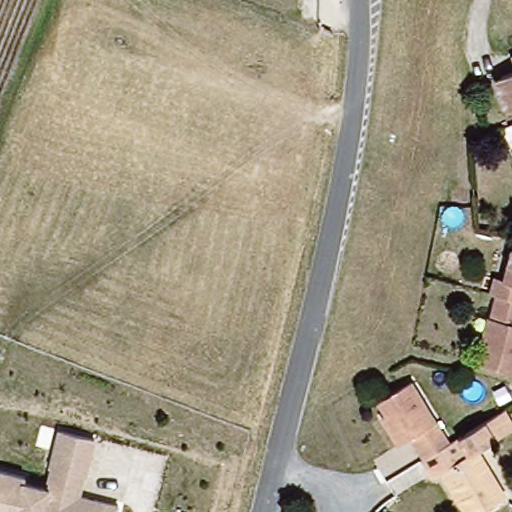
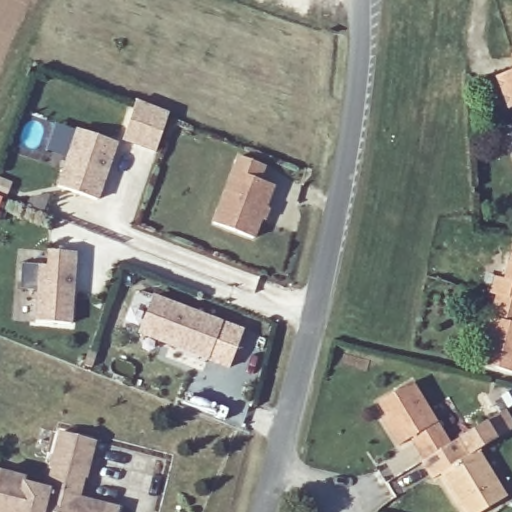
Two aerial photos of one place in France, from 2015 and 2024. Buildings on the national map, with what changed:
unchanged [(500,79),(512,73),(512,109),(500,79)]
new [(136,98),(170,112),(155,153),(121,140),(136,98)]
new [(98,202),(55,188),(76,127),(118,142),(98,202)]
new [(265,167),(261,180),(275,186),(254,239),(211,223),(237,158),(265,167)]
new [(73,323),(35,321),(39,265),(47,266),(48,251),(76,253),(73,323)]
unchanged [(483,351),(478,350),(486,319),(488,320),(495,296),(487,294),(492,278),(502,281),(512,252),(512,376),(478,366),(483,351)]
new [(223,322),(208,361),(137,334),(151,294),(223,322)]
unchanged [(421,456),(410,436),(396,445),(380,418),(384,415),(377,402),(407,383),(444,442),(421,456)]
unchanged [(512,429),(512,439),(484,457),(508,499),(488,512),(464,512),(449,479),(437,483),(421,456),(444,442),(499,408),(512,429)]
unchanged [(24,486),(44,490),(59,433),(95,444),(81,498),(120,508),(119,512),(0,512),(0,475),(24,479),(24,486)]

